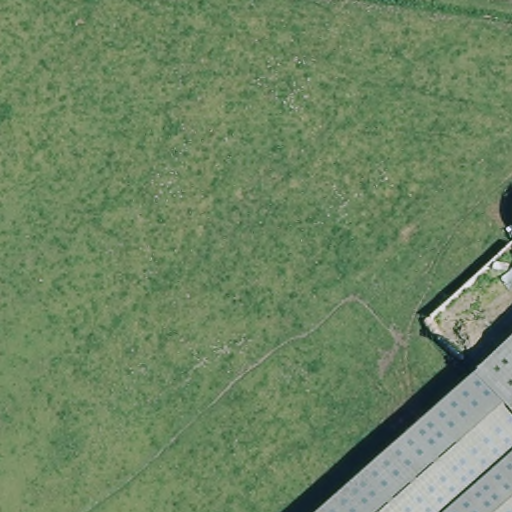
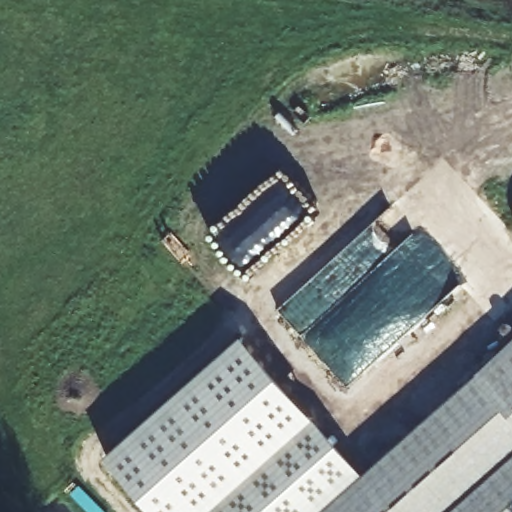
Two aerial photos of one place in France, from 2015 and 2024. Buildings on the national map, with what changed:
new [(320,512),(156,512),(106,456),(243,335),(363,474),(320,512)]
unchanged [(476,374),(512,342),(512,413),(476,374)]
unchanged [(512,413),(512,512),(320,512),(476,374),(512,413)]

